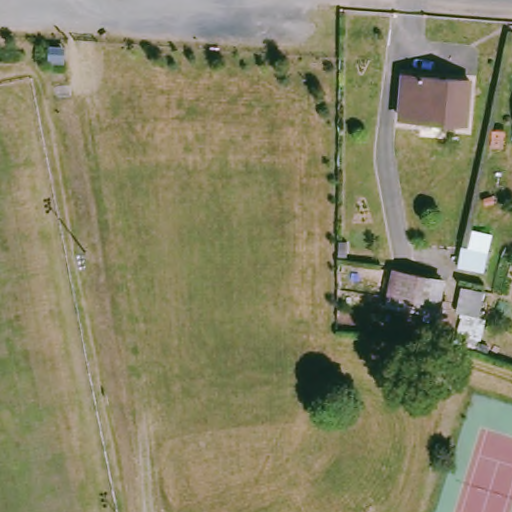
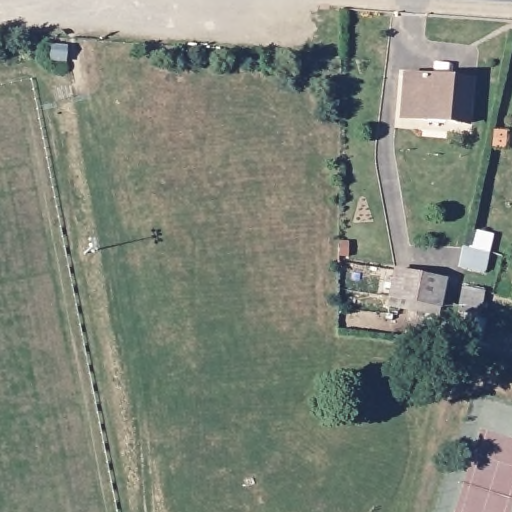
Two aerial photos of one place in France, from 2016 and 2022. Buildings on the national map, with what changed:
unchanged [(472,84),(469,124),(405,120),(408,79),(472,84)]
unchanged [(441,311),(390,301),(397,266),(447,277),(442,303),(441,311)]
unchanged [(452,309),(461,309),(464,288),(490,292),(481,352),(449,348),(452,309)]

